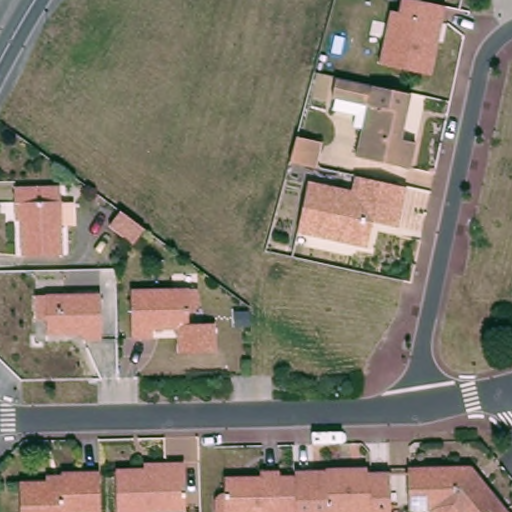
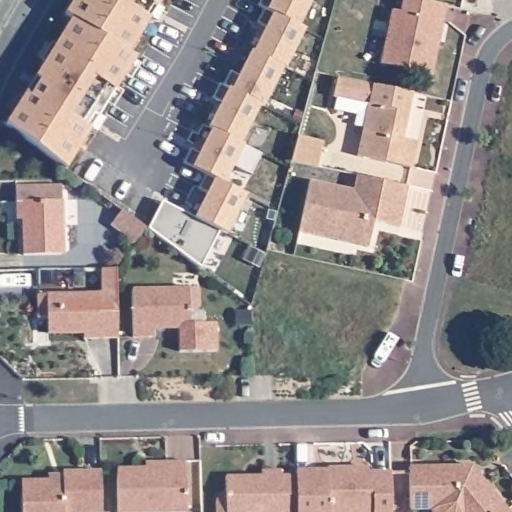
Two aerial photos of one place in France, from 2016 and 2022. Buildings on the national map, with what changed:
new [(71,17),(64,12),(72,0),(160,0),(127,52),(134,56),(65,166),(5,122),(71,17)]
new [(298,25),(263,7),(257,4),(259,0),(312,0),(298,25)]
unchanged [(442,21),(438,40),(431,74),(380,62),(392,9),(400,11),(402,0),(421,0),(446,5),(442,21)]
new [(265,26),(256,22),(263,7),(298,25),(305,29),(285,67),(283,66),(252,51),(265,26)]
new [(229,70),(238,75),(251,50),(252,51),(283,66),(263,105),(261,104),(222,84),(229,70)]
unchanged [(412,93),(403,139),(417,141),(412,167),(357,156),(368,104),(333,96),(337,77),(412,93)]
new [(221,101),(212,97),(219,82),(222,84),(261,104),(241,142),(211,128),(208,126),(221,101)]
new [(191,147),(199,152),(211,128),(241,142),(244,144),(224,183),(207,174),(183,162),(191,147)]
unchanged [(290,162),(297,135),(322,141),(317,167),(290,162)]
new [(209,193),(200,189),(207,174),(224,183),(246,194),(227,233),(220,230),(196,217),(209,193)]
unchanged [(353,187),(355,175),(409,185),(402,227),(374,221),(368,246),(296,232),(309,179),(353,187)]
unchanged [(65,254),(25,255),(24,218),(18,218),(18,201),(17,185),(64,184),(65,254)]
new [(164,201),(196,217),(220,230),(200,267),(149,230),(164,201)]
unchanged [(147,228),(137,242),(113,225),(124,210),(147,228)]
unchanged [(160,327),(160,336),(139,336),(137,288),(205,287),(205,301),(205,303),(204,306),(202,308),(201,309),(199,310),(197,311),(195,311),(195,326),(160,327)]
unchanged [(102,292),(104,337),(84,338),(84,332),(48,332),(47,317),(37,317),(37,294),(102,292)]
unchanged [(121,512),(120,470),(149,469),(149,463),(170,462),(190,462),(190,512),(121,512)]
unchanged [(414,510),(413,467),(476,466),(477,468),(487,480),(512,511),(512,512),(436,512),(435,509),(414,510)]
unchanged [(301,512),(301,476),(301,472),(301,470),(332,470),(331,469),(359,468),(371,468),(372,473),(395,472),(395,512),(301,512)]
unchanged [(267,470),(286,470),(286,476),(301,476),(301,512),(221,512),(221,502),(222,500),(222,498),(223,496),(224,495),(225,495),(227,494),(227,493),(229,493),(231,492),(231,477),(267,476),(267,470)]
unchanged [(106,512),(26,512),(26,483),(53,482),(53,476),(67,476),(67,473),(105,472),(106,512)]

